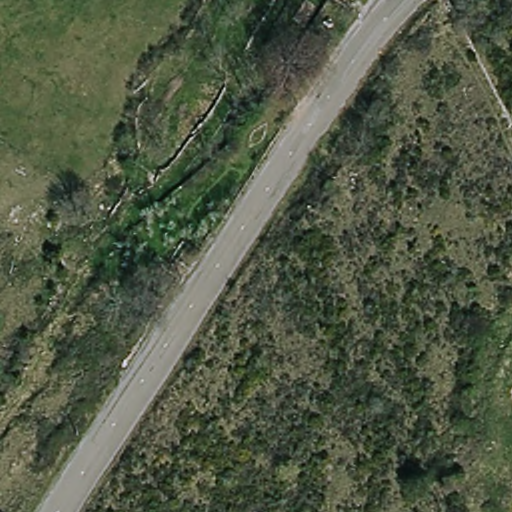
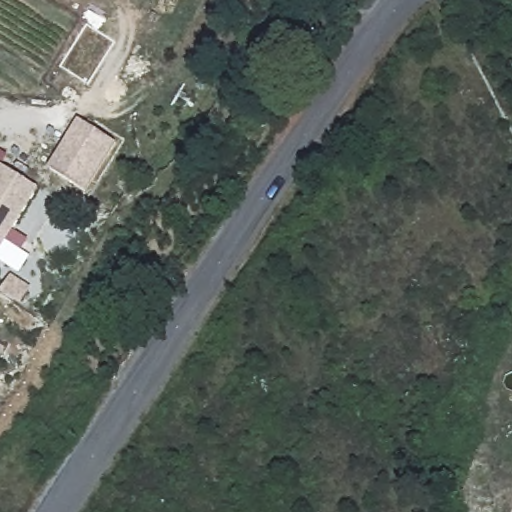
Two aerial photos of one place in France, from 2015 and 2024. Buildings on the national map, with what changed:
unchanged [(358,0),(363,0),(362,2),(358,0)]
new [(79,120),(117,142),(85,191),(48,167),(79,120)]
new [(0,251),(0,166),(38,188),(0,251)]

